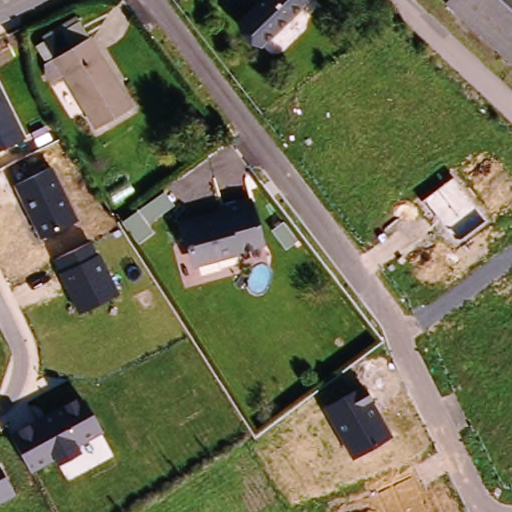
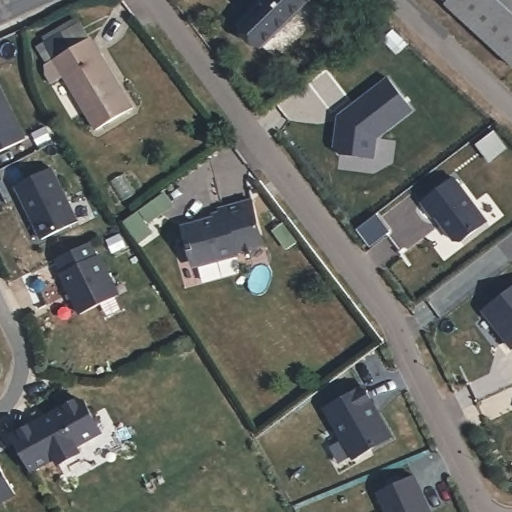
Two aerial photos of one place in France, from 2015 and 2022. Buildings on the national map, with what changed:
unchanged [(265,0),(309,0),(263,45),(241,23),(265,0)]
unchanged [(512,6),(512,60),(451,0),(506,0),(512,6)]
unchanged [(512,6),(506,0),(512,0),(512,6)]
unchanged [(135,104),(101,124),(69,71),(57,78),(51,69),(50,60),(59,54),(93,34),(135,104)]
new [(378,137),(374,157),(339,154),(333,146),(336,116),(389,76),(414,111),(378,137)]
unchanged [(25,137),(0,149),(0,86),(25,137)]
unchanged [(53,166),(79,220),(40,237),(14,184),(53,166)]
unchanged [(487,222),(461,240),(454,240),(423,201),(454,178),(487,222)]
unchanged [(219,218),(218,211),(250,202),(262,249),(236,256),(236,258),(194,269),(191,253),(187,253),(181,228),(219,218)]
unchanged [(56,259),(93,241),(118,295),(79,314),(56,259)]
new [(512,347),(483,309),(512,286),(512,347)]
unchanged [(363,384),(392,437),(352,459),(326,404),(363,384)]
unchanged [(101,433),(78,445),(81,453),(56,465),(53,460),(31,471),(13,436),(81,396),(101,433)]
unchanged [(0,504),(0,470),(14,497),(0,504)]
unchanged [(415,475),(432,512),(386,512),(377,493),(415,475)]

